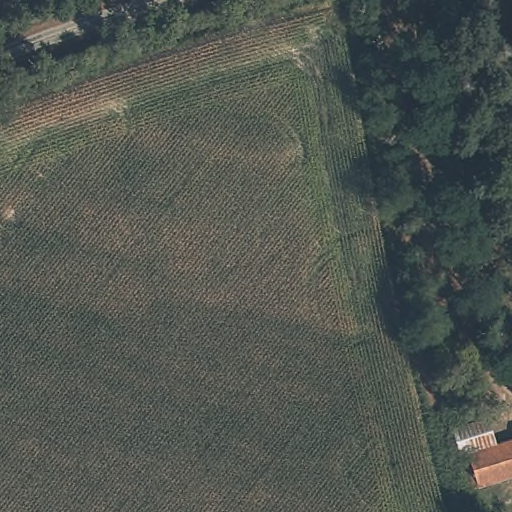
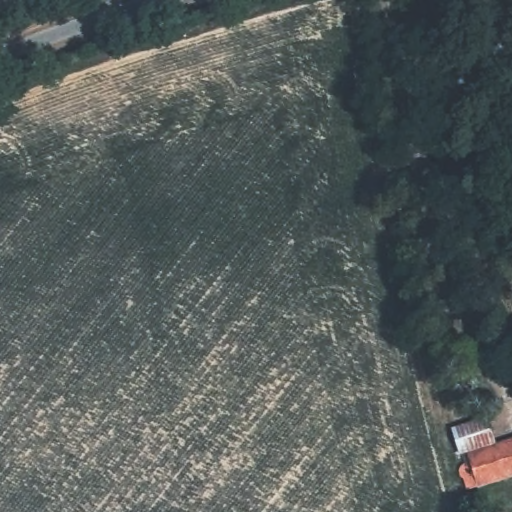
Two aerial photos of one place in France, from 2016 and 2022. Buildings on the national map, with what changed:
unchanged [(478,486),(469,450),(462,423),(492,415),(500,441),(512,438),(512,477),(478,486)]

